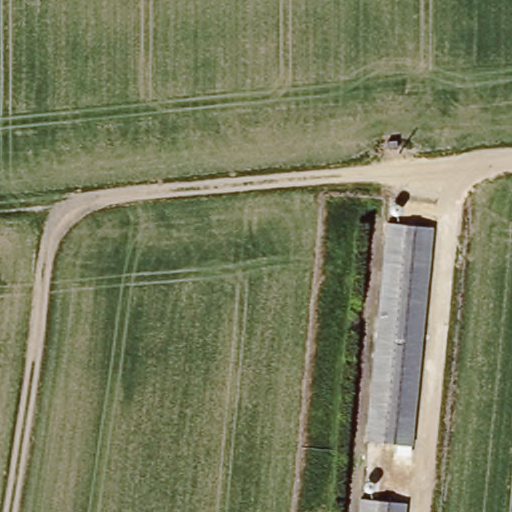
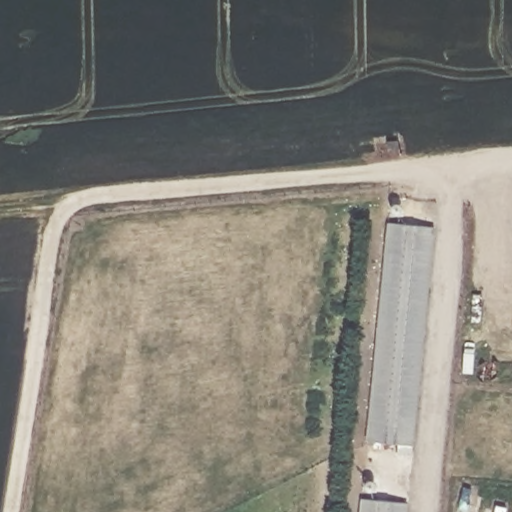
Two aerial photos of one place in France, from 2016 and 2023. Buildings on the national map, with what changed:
unchanged [(417,442),(362,442),(384,222),(438,227),(417,442)]
unchanged [(411,512),(357,512),(359,493),(412,499),(411,512)]

